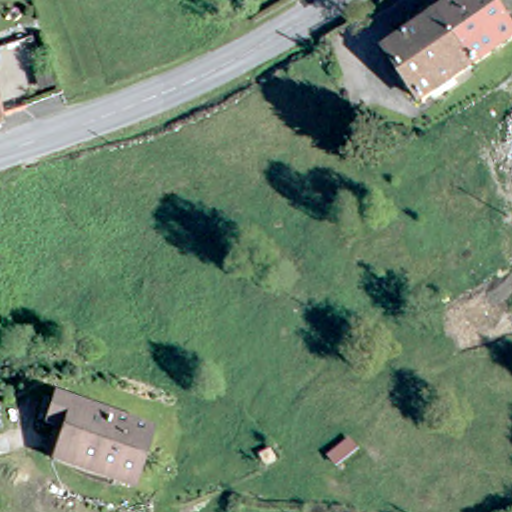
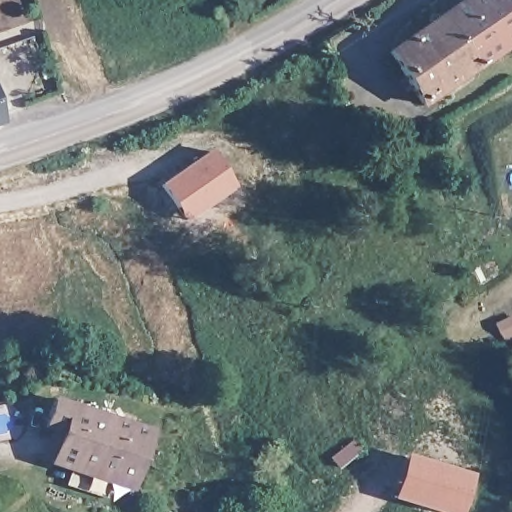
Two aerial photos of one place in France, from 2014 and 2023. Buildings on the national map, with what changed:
unchanged [(512,52),(425,109),(389,57),(476,0),(497,0),(512,23),(512,52)]
new [(176,209),(160,187),(210,152),(234,187),(207,205),(185,220),(176,209)]
unchanged [(116,424),(152,435),(135,490),(95,477),(70,469),(51,463),(61,432),(45,426),(52,403),(116,424)]
unchanged [(365,451),(345,465),(337,456),(358,441),(365,451)]
new [(444,512),(397,497),(410,457),(418,459),(475,476),(465,512),(444,512)]
demolished [(19,466),(17,497),(0,498),(0,466),(19,466)]

